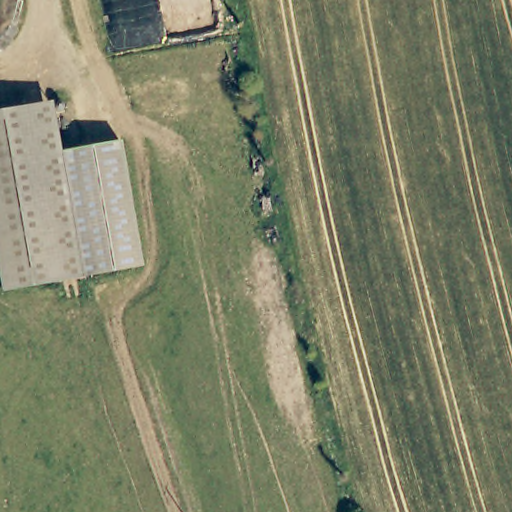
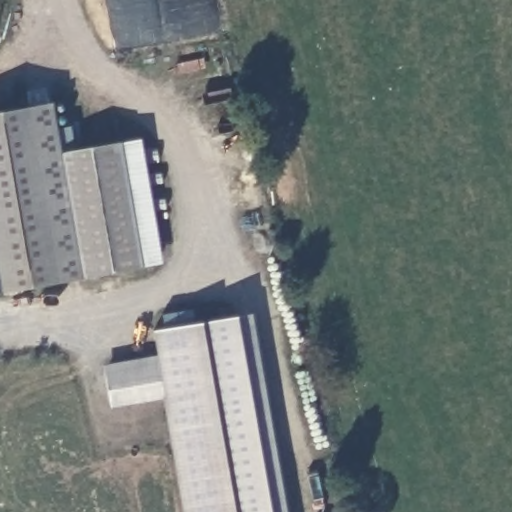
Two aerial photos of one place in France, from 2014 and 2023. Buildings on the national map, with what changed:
unchanged [(81,273),(4,287),(0,268),(0,110),(50,101),(81,273)]
unchanged [(120,141),(143,264),(81,273),(59,151),(120,141)]
new [(286,512),(182,512),(163,398),(110,408),(103,363),(156,355),(152,331),(164,328),(161,313),(192,308),(194,322),(252,314),(286,512)]

